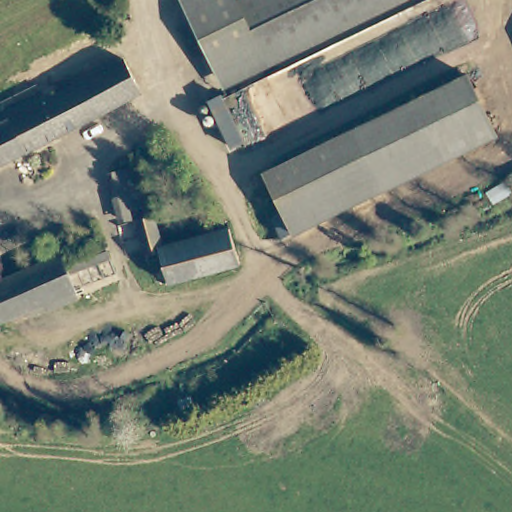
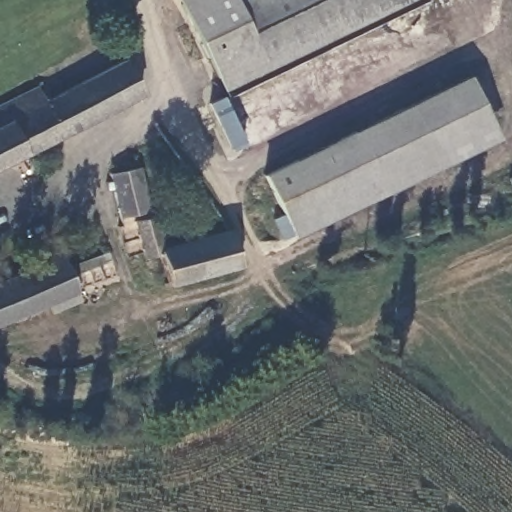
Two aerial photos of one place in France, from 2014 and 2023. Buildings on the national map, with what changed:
unchanged [(176,4),(183,0),(238,0),(244,12),(193,38),(176,4)]
unchanged [(268,0),(401,0),(218,89),(193,38),(244,12),(268,0)]
unchanged [(0,108),(27,92),(37,110),(115,66),(134,98),(0,173),(0,131),(0,108)]
unchanged [(272,220),(282,215),(268,186),(470,87),(495,137),(292,236),(282,240),(272,220)]
unchanged [(225,148),(207,113),(202,102),(214,96),(236,142),(225,148)]
unchanged [(170,290),(158,257),(144,262),(130,225),(123,228),(105,178),(131,171),(147,219),(150,218),(163,255),(231,232),(243,265),(170,290)]
unchanged [(512,174),(512,190),(508,192),(502,178),(512,174)]
unchanged [(71,289),(0,323),(0,282),(55,256),(71,289)]

